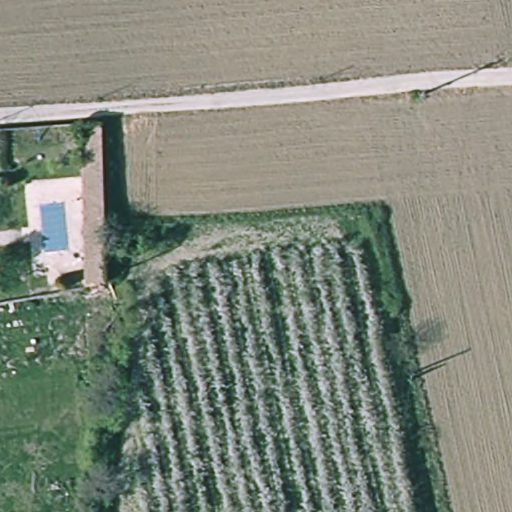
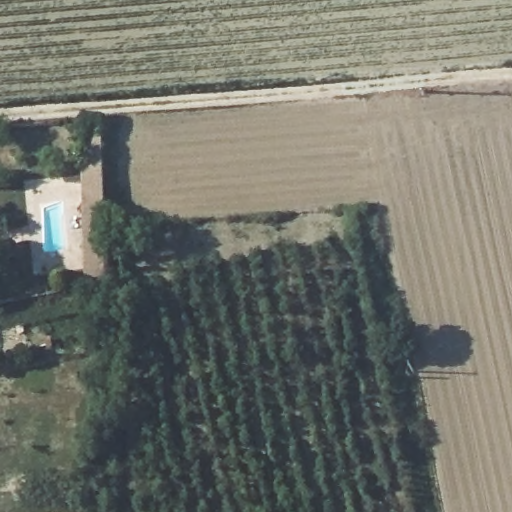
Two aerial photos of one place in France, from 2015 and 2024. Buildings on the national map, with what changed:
unchanged [(110,286),(83,287),(81,128),(106,127),(110,286)]

